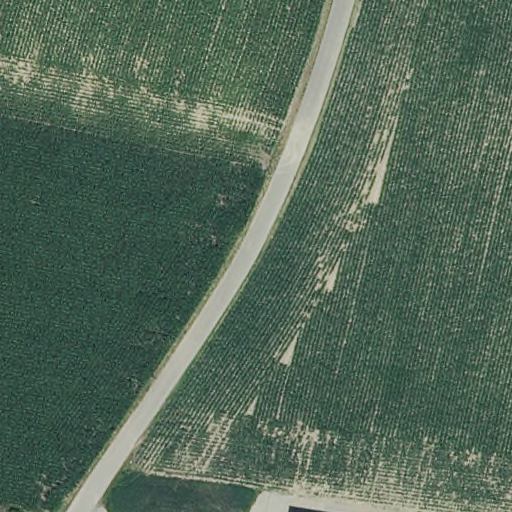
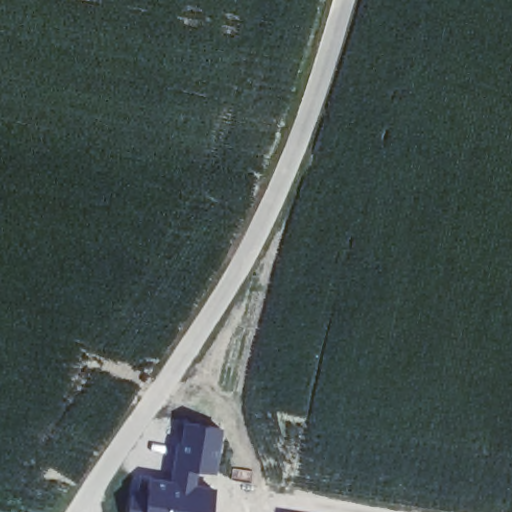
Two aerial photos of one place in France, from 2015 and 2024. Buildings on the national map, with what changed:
new [(167,478),(181,419),(224,428),(215,472),(197,469),(195,483),(215,486),(211,512),(128,512),(134,473),(167,478)]

